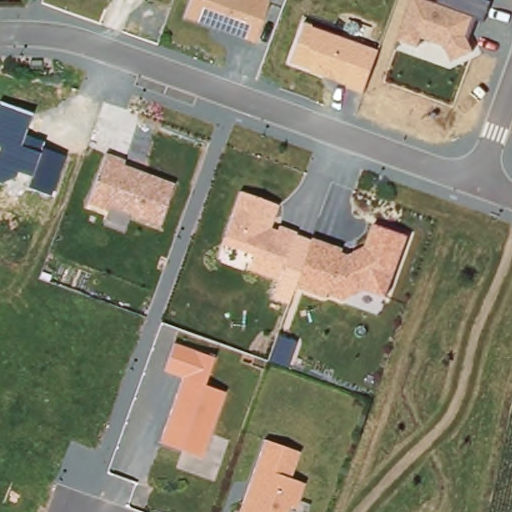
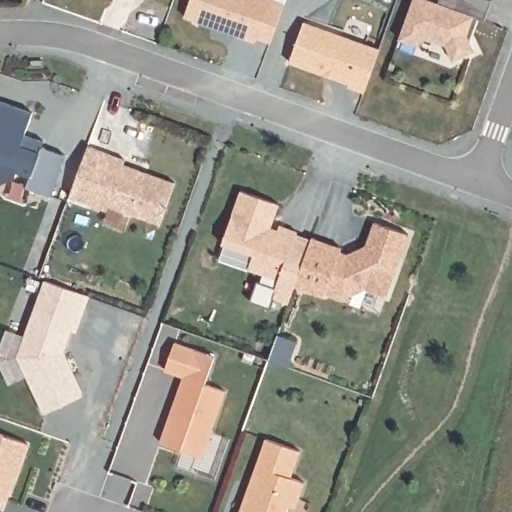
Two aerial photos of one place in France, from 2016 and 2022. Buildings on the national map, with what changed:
unchanged [(253,43),(183,17),(189,0),(269,0),(253,43)]
unchanged [(444,45),(422,37),(418,47),(398,39),(412,0),(429,0),(439,4),(440,0),(483,0),(490,2),(484,21),(473,17),(466,38),(473,51),(452,60),(444,45)]
unchanged [(346,89),(347,85),(288,63),(303,23),(378,48),(363,94),(346,89)]
unchanged [(25,137),(43,142),(41,148),(64,157),(50,197),(27,190),(31,177),(18,172),(15,177),(1,185),(0,184),(0,104),(31,114),(25,137)]
unchanged [(107,205),(105,212),(87,206),(106,154),(124,161),(122,165),(174,184),(157,224),(107,205)]
unchanged [(249,270),(253,257),(220,247),(239,191),(277,203),(270,229),(276,231),(278,227),(296,233),(280,280),(249,270)]
unchanged [(366,290),(344,301),(323,293),(323,297),(294,288),(310,239),(340,247),(338,252),(345,254),(364,248),(373,225),(406,236),(386,297),(366,290)]
new [(89,296),(76,332),(71,331),(63,354),(82,395),(45,413),(17,356),(45,280),(89,296)]
new [(277,334),(295,341),(291,351),(285,366),(267,360),(273,345),(277,334)]
unchanged [(159,442),(182,377),(164,371),(174,342),(212,356),(202,383),(225,392),(201,457),(159,442)]
new [(7,502),(0,499),(0,434),(27,444),(7,502)]
unchanged [(293,481),(307,485),(299,510),(291,507),(290,512),(241,512),(266,441),(302,454),(293,481)]

